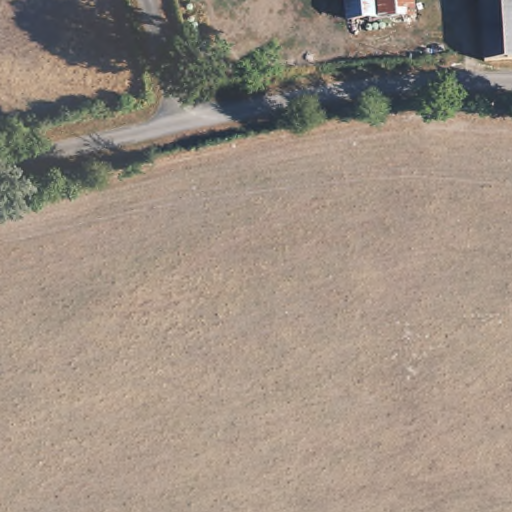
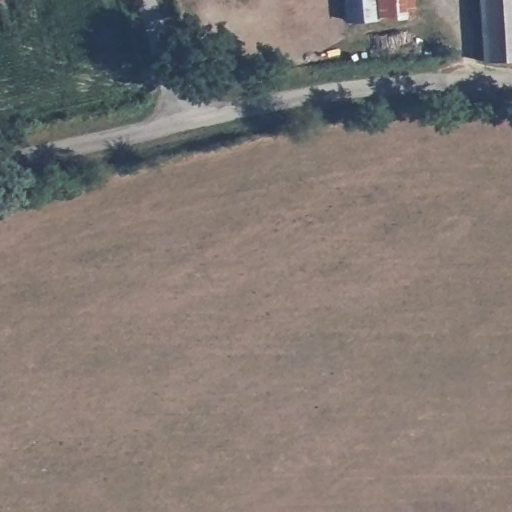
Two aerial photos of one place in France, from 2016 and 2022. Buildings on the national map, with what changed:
unchanged [(345,23),(344,0),(374,0),(376,21),(345,23)]
unchanged [(376,21),(374,0),(412,0),(414,19),(376,21)]
unchanged [(480,66),(479,0),(512,0),(512,64),(480,66)]

